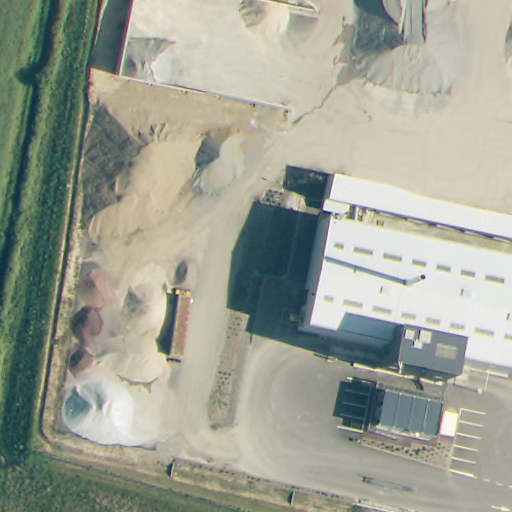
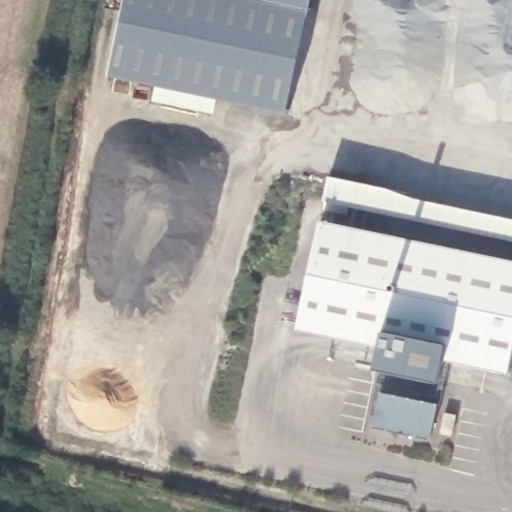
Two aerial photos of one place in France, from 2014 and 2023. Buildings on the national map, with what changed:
new [(109,78),(126,0),(312,0),(287,116),(109,78)]
unchanged [(328,178),(385,188),(414,200),(512,220),(512,243),(323,203),(328,178)]
unchanged [(443,362),(437,385),(373,371),(379,348),(296,331),(320,222),(512,261),(512,363),(510,375),(443,362)]
unchanged [(430,441),(372,429),(380,393),(438,405),(430,441)]

